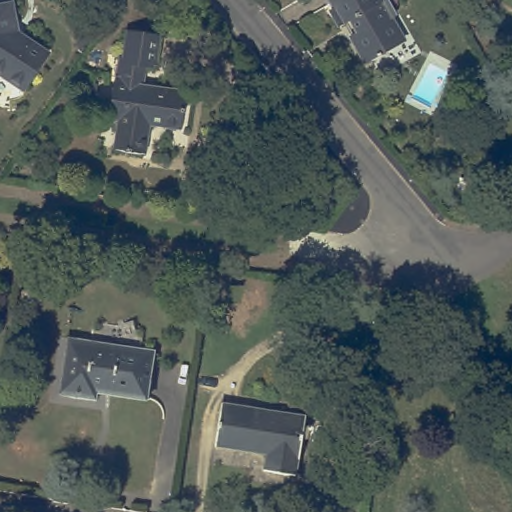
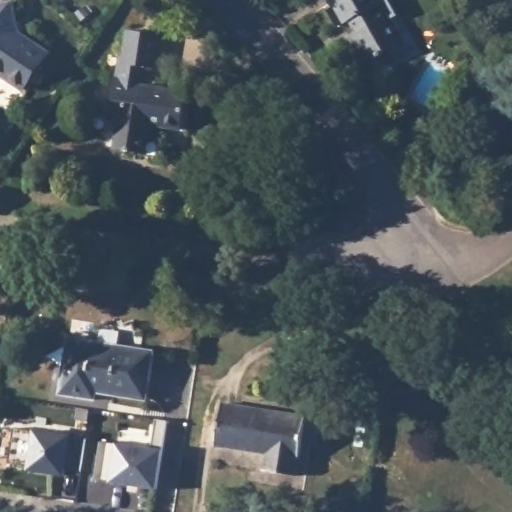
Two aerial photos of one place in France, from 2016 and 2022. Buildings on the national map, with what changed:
unchanged [(330,0),(388,0),(397,14),(392,17),(405,40),(371,59),(370,57),(365,60),(350,34),(356,31),(350,20),(340,25),(329,8),(333,5),(330,0)]
unchanged [(15,3),(21,33),(51,53),(26,89),(10,77),(0,71),(0,6),(15,3)]
unchanged [(113,119),(122,57),(127,57),(131,29),(162,35),(158,67),(150,66),(148,86),(188,92),(183,128),(152,123),(148,153),(118,149),(122,121),(113,119)]
unchanged [(23,305),(25,295),(41,298),(39,308),(23,305)]
unchanged [(59,394),(68,336),(153,351),(146,399),(96,391),(94,399),(59,394)]
unchanged [(0,414),(3,402),(12,404),(10,415),(0,414)]
unchanged [(218,444),(225,402),(308,416),(301,458),(299,458),(296,475),(267,470),(269,452),(218,444)]
unchanged [(357,446),(360,427),(366,428),(368,412),(376,414),(374,429),(370,449),(357,446)]
new [(102,442),(117,445),(152,450),(157,419),(166,421),(163,450),(156,489),(111,482),(95,479),(102,442)]
new [(13,427),(85,439),(80,471),(64,469),(63,475),(28,469),(28,466),(8,463),(13,427)]

